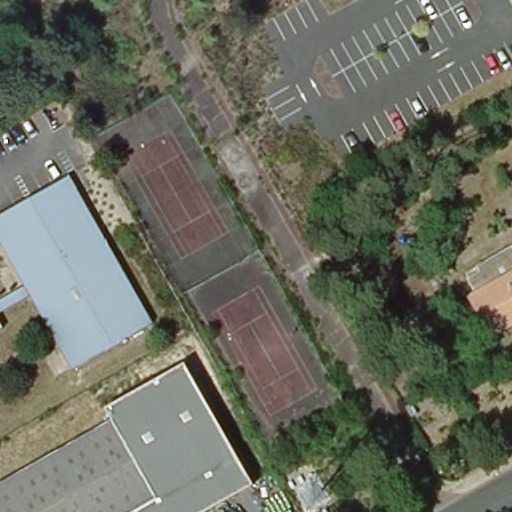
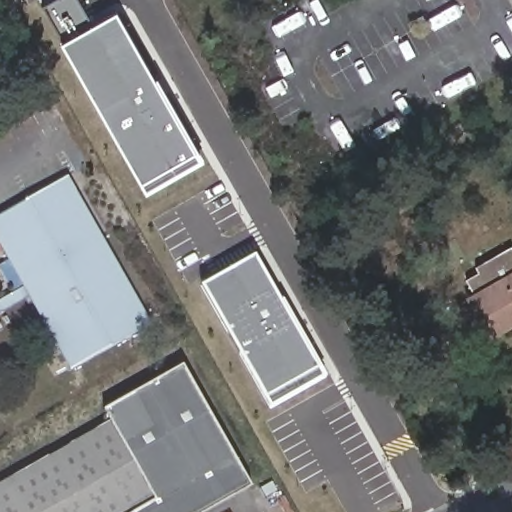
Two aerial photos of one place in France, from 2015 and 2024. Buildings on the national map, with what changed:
new [(57,0),(77,0),(92,27),(116,14),(193,156),(141,183),(65,42),(45,6),(57,0)]
unchanged [(0,247),(0,216),(66,178),(149,323),(69,367),(29,297),(0,313),(0,300),(24,287),(0,247)]
unchanged [(498,333),(479,300),(476,303),(465,285),(478,278),(476,272),(511,252),(512,254),(512,325),(498,333)]
new [(315,372),(266,399),(205,286),(255,259),(315,372)]
unchanged [(0,329),(0,326),(1,328),(0,329)]
unchanged [(156,503),(110,425),(104,413),(184,367),(252,490),(212,512),(140,512),(156,503)]
unchanged [(140,512),(0,512),(0,488),(110,425),(156,503),(140,512)]

